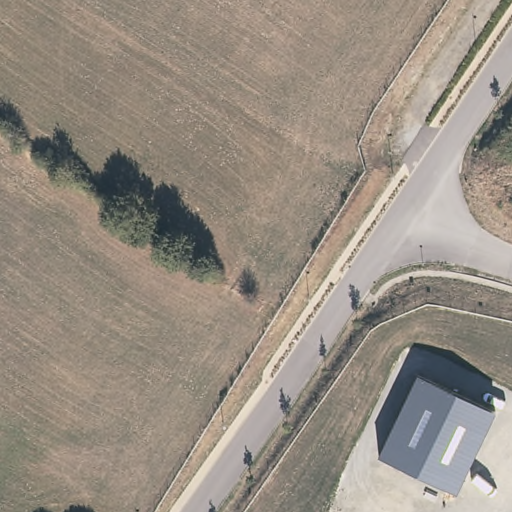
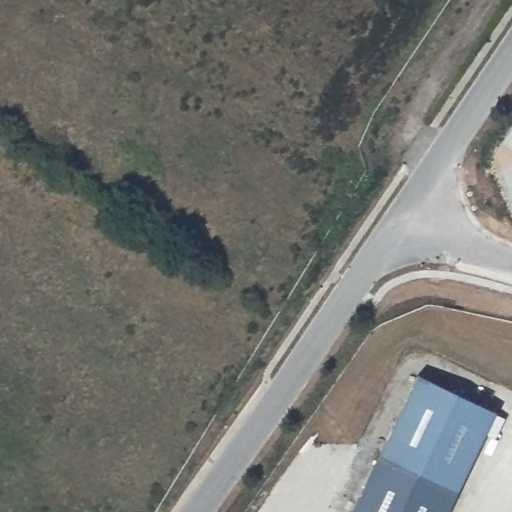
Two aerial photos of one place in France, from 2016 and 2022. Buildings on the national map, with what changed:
unchanged [(461,493),(381,455),(422,376),(499,411),(461,493)]
new [(447,512),(352,512),(381,455),(458,491),(447,512)]

